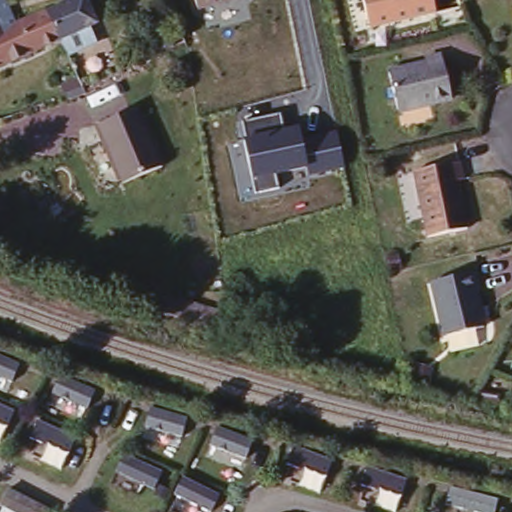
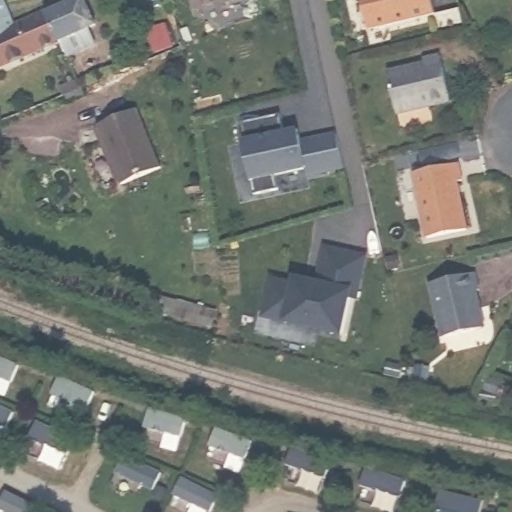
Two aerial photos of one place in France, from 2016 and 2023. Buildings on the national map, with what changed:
unchanged [(8,26),(67,0),(90,0),(99,21),(90,25),(97,41),(67,55),(58,39),(0,65),(0,9),(8,26)]
unchanged [(199,9),(196,0),(228,0),(199,9)]
unchanged [(442,5),(360,28),(351,0),(441,0),(442,5)]
unchanged [(388,74),(426,64),(424,59),(441,55),(452,98),(399,113),(388,74)]
unchanged [(141,108),(165,166),(126,182),(101,124),(141,108)]
unchanged [(311,178),(307,167),(276,174),(279,190),(256,194),(241,125),(282,116),(285,129),(300,126),(303,139),(337,131),(346,171),(311,178)]
unchanged [(423,235),(412,171),(462,162),(465,183),(456,185),(465,229),(423,235)]
unchanged [(472,269),(477,285),(472,286),(482,323),(443,333),(430,280),(472,269)]
new [(270,274),(298,280),(300,271),(352,284),(341,335),(262,315),(270,274)]
unchanged [(180,310),(174,325),(151,317),(156,302),(180,310)]

